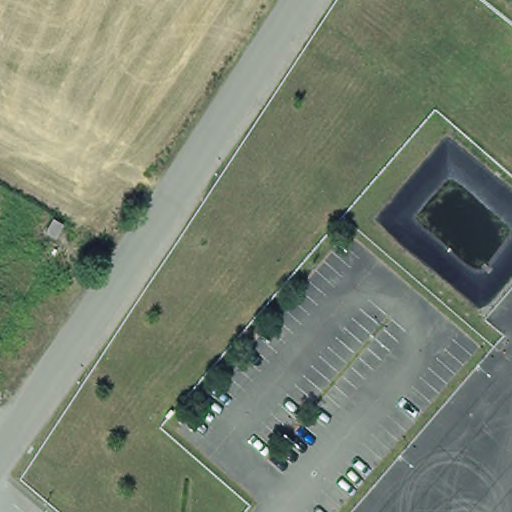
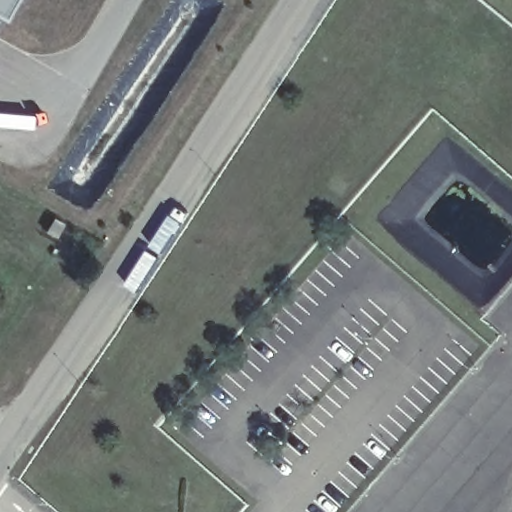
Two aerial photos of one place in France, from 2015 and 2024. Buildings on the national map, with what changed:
new [(6,24),(0,23),(0,0),(20,0),(6,24)]

